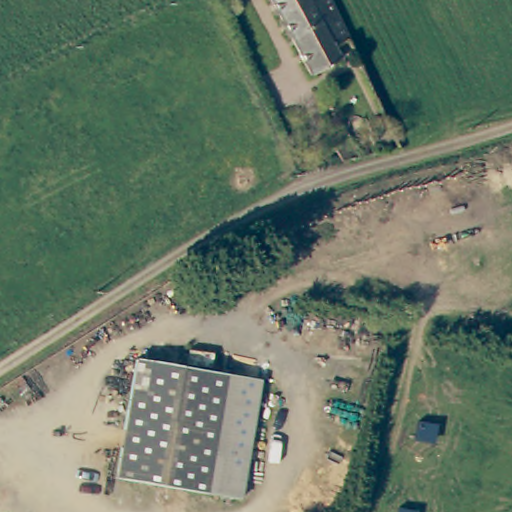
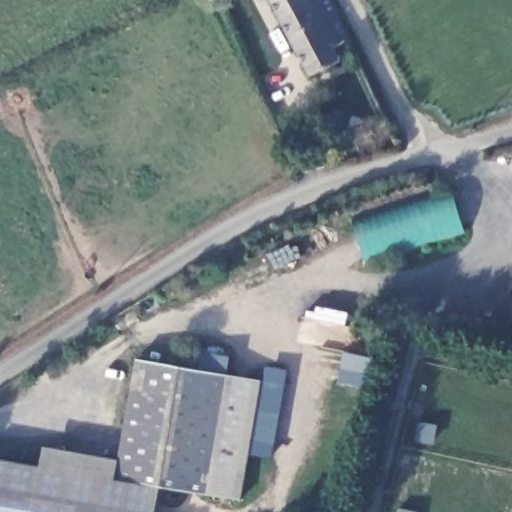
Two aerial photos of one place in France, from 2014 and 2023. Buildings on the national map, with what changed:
unchanged [(331,54),(335,67),(303,82),(265,3),(270,0),(322,0),(345,46),(331,54)]
unchanged [(338,163),(329,145),(338,139),(347,159),(338,163)]
new [(364,260),(353,220),(453,193),(464,232),(364,260)]
unchanged [(116,477),(141,360),(229,377),(265,385),(239,503),(200,494),(116,477)]
new [(118,478),(162,486),(157,512),(0,512),(0,459),(41,466),(45,447),(119,460),(116,477),(118,478)]

